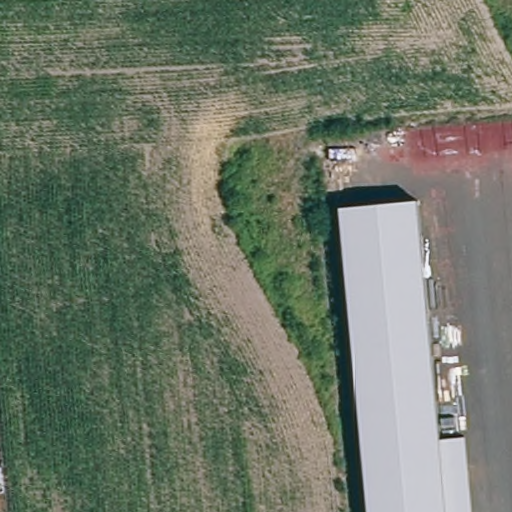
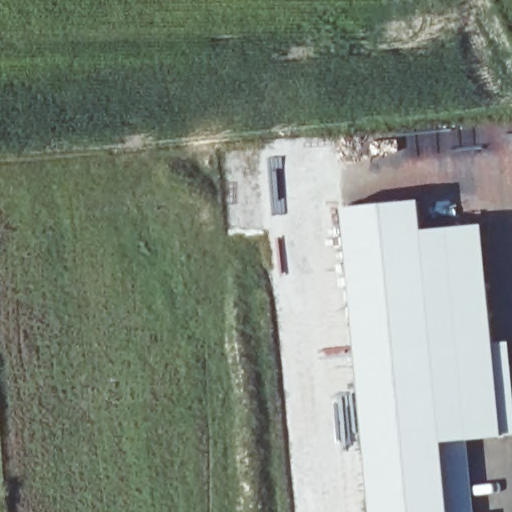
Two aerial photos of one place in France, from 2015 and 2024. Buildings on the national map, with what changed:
unchanged [(368,470),(343,204),(419,197),(442,436),(466,434),(474,512),(372,512),(368,470)]
new [(509,341),(512,377),(512,437),(501,438),(467,440),(466,434),(442,436),(423,232),(481,225),(494,344),(509,341)]

